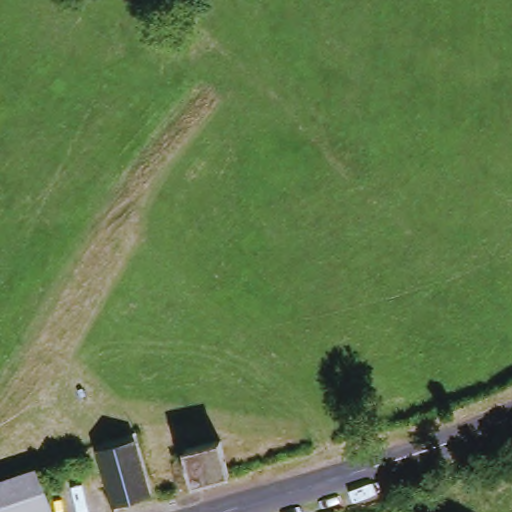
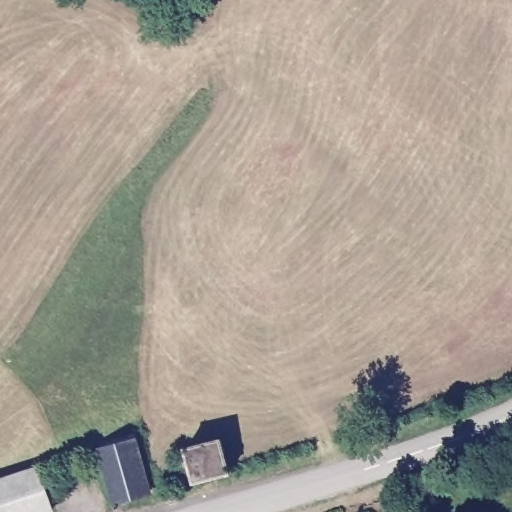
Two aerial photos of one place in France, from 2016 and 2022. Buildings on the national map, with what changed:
unchanged [(127,445),(143,494),(110,504),(95,455),(127,445)]
unchanged [(49,512),(2,512),(0,505),(0,482),(38,469),(52,511),(49,512)]

